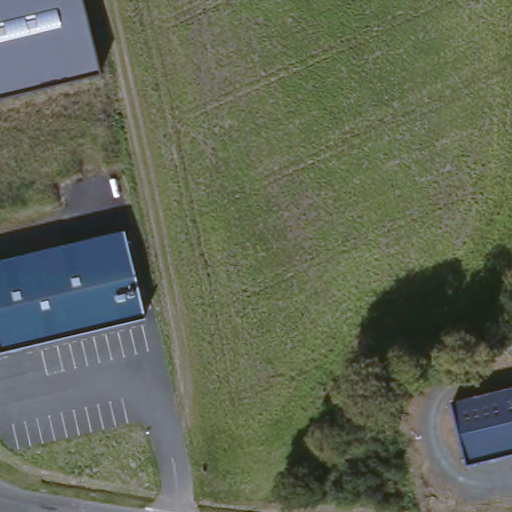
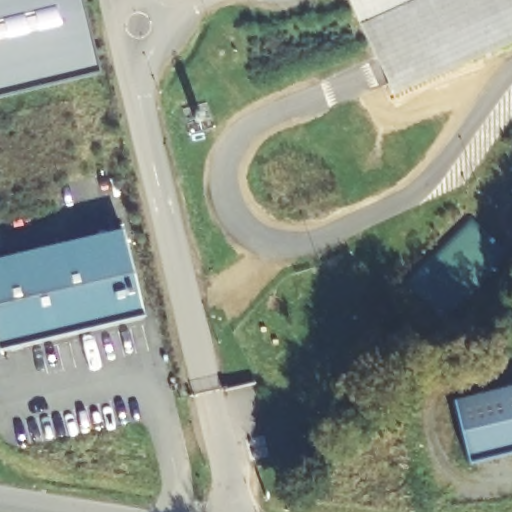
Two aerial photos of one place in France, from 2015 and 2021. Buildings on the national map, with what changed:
unchanged [(81,0),(99,73),(0,96),(0,0),(81,0)]
new [(342,0),(512,0),(512,47),(388,103),(342,0)]
unchanged [(0,355),(0,261),(121,234),(143,321),(0,355)]
unchanged [(449,406),(512,391),(512,456),(466,468),(449,406)]

